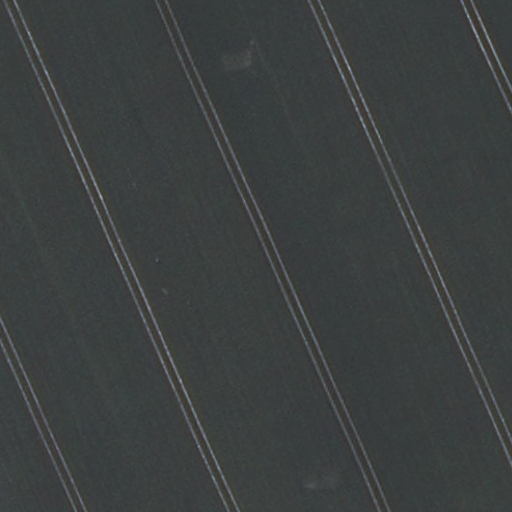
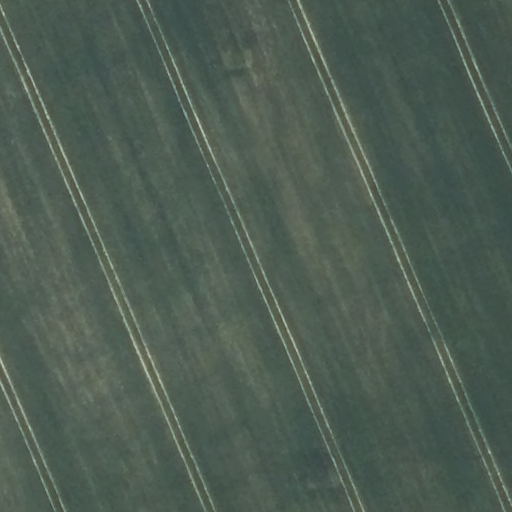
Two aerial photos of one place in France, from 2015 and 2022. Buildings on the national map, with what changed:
[]

